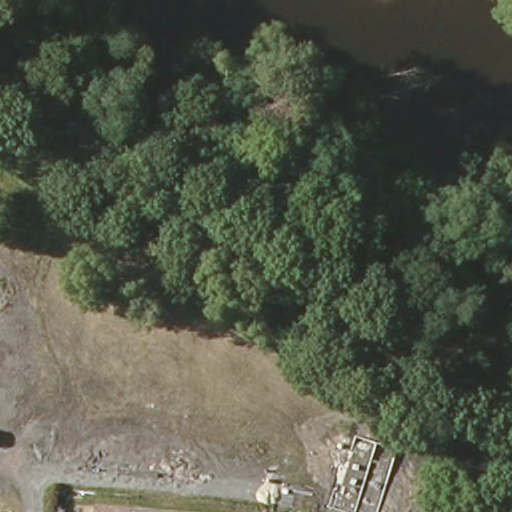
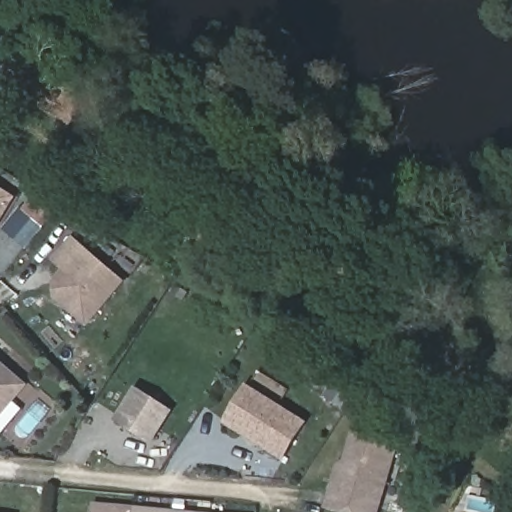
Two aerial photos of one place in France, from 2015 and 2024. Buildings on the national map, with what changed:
new [(16,199),(0,225),(0,189),(16,199)]
new [(51,261),(72,237),(125,283),(86,327),(54,300),(53,282),(62,272),(51,261)]
new [(29,387),(0,421),(0,362),(29,387)]
new [(283,463),(222,424),(246,385),(308,424),(283,463)]
new [(151,446),(114,422),(136,388),(175,412),(151,446)]
unchanged [(346,512),(332,508),(353,435),(397,447),(378,512),(346,512)]
unchanged [(103,512),(92,512),(92,511),(103,512)]

